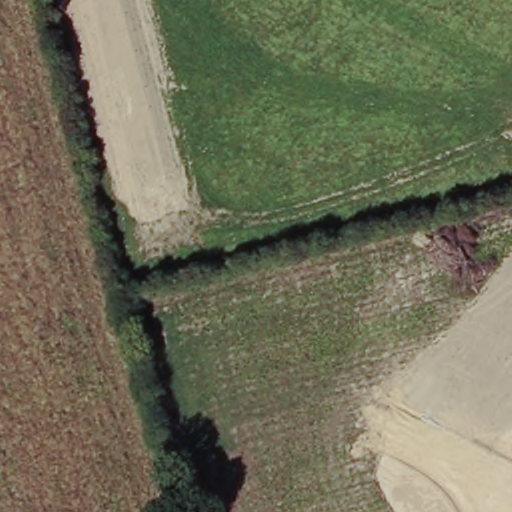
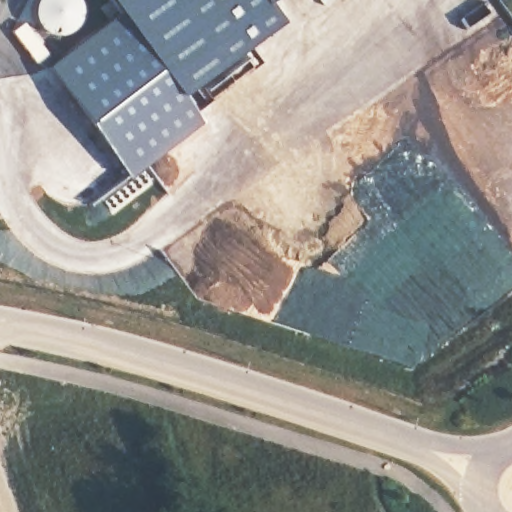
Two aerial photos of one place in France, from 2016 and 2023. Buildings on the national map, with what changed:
new [(278,19),(183,87),(205,120),(132,178),(44,62),(117,9),(110,0),(265,0),(278,19)]

